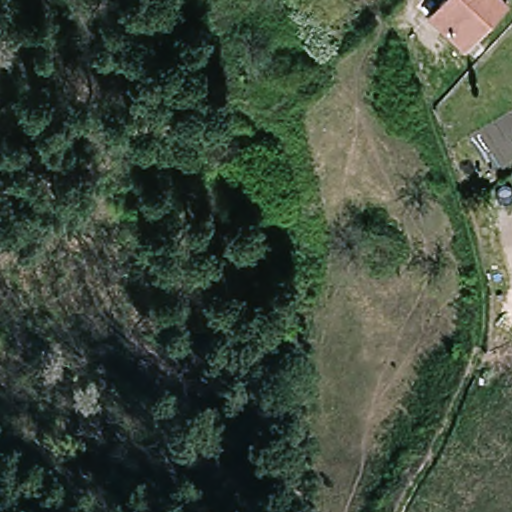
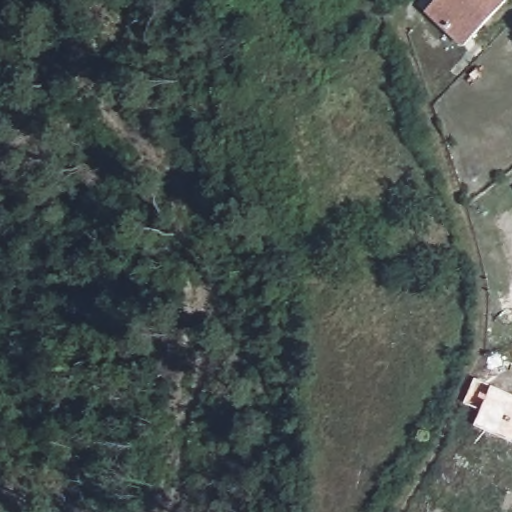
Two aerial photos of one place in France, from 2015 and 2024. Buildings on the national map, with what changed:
unchanged [(434,10),(443,0),(506,0),(468,42),(434,10)]
new [(482,411),(464,404),(476,380),(493,387),(512,396),(512,443),(474,427),(482,411)]

